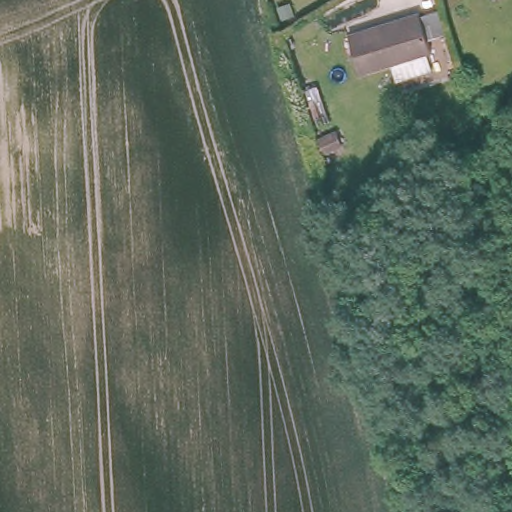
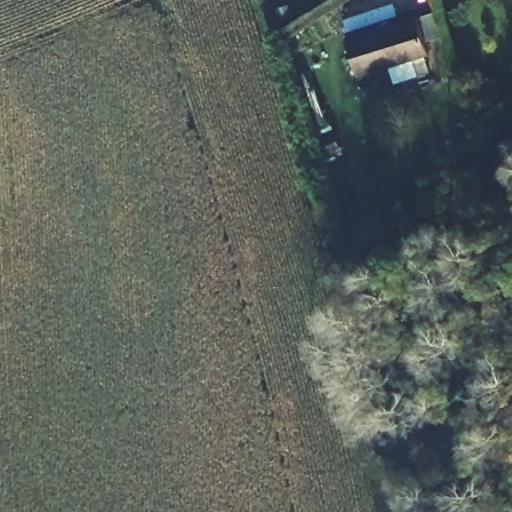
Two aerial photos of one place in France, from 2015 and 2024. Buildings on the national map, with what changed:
unchanged [(414,14),(425,52),(354,72),(343,36),(414,14)]

